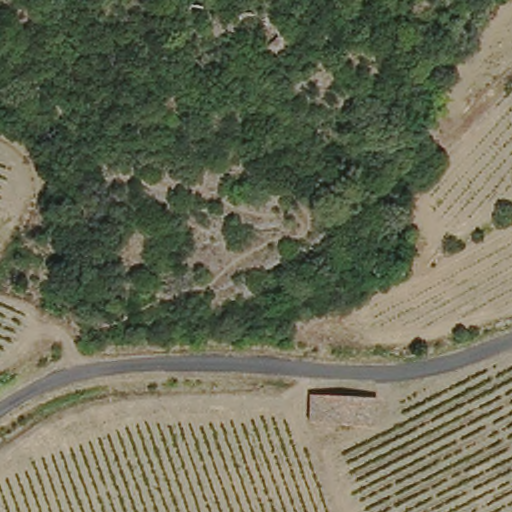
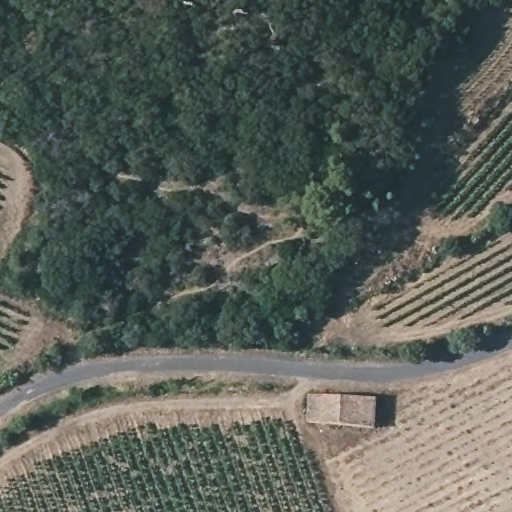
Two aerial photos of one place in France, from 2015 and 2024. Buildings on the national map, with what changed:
unchanged [(370,426),(339,425),(309,423),(311,395),(342,397),(375,399),(373,422),(370,426)]

